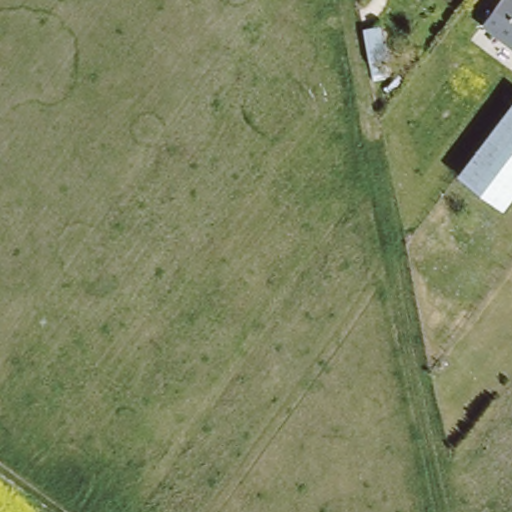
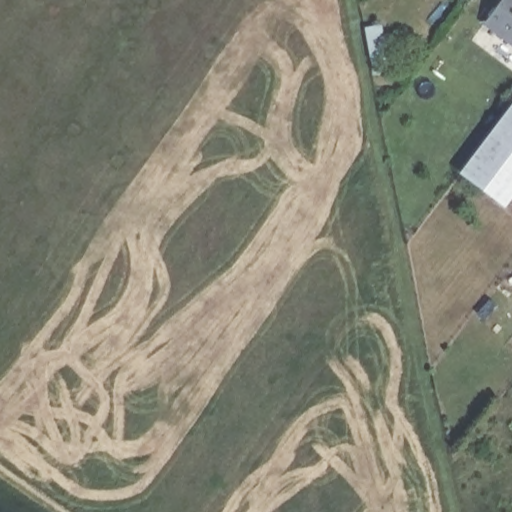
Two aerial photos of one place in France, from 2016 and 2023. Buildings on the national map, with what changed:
unchanged [(482,21),(497,0),(512,0),(512,43),(482,21)]
unchanged [(505,206),(462,172),(512,105),(512,197),(505,206)]

